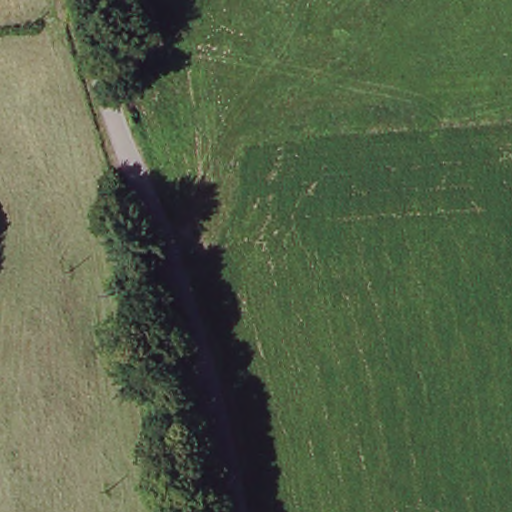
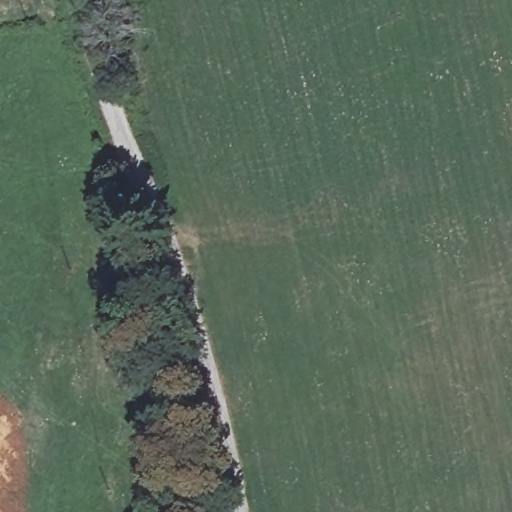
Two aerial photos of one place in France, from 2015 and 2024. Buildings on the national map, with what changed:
[]

